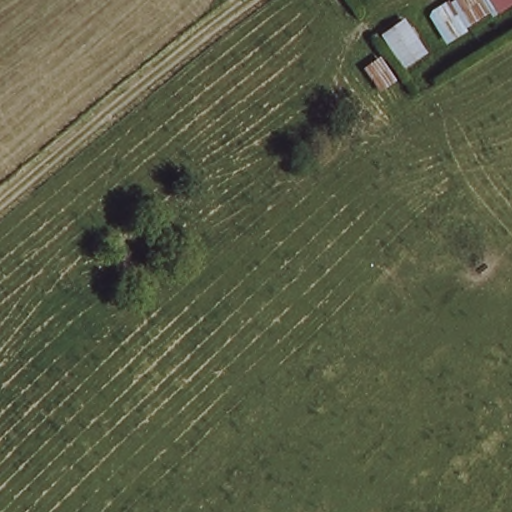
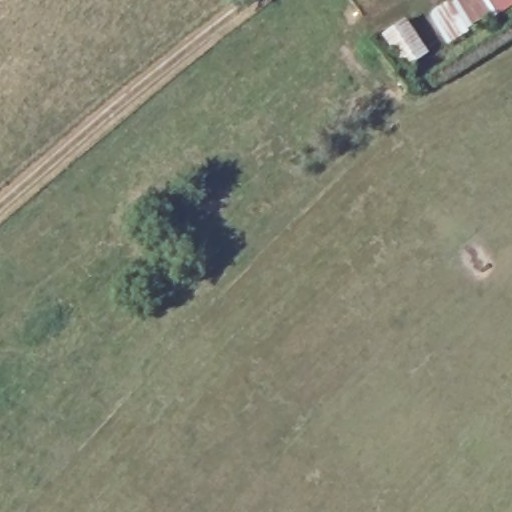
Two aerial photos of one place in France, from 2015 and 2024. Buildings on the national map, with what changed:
unchanged [(427,7),(440,0),(510,0),(448,39),(427,7)]
unchanged [(423,54),(405,66),(382,34),(402,22),(423,54)]

